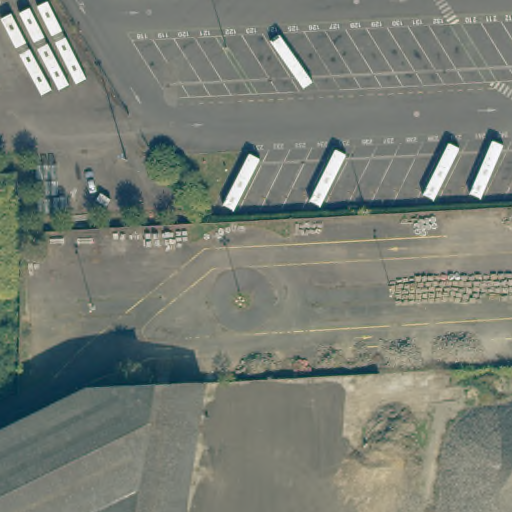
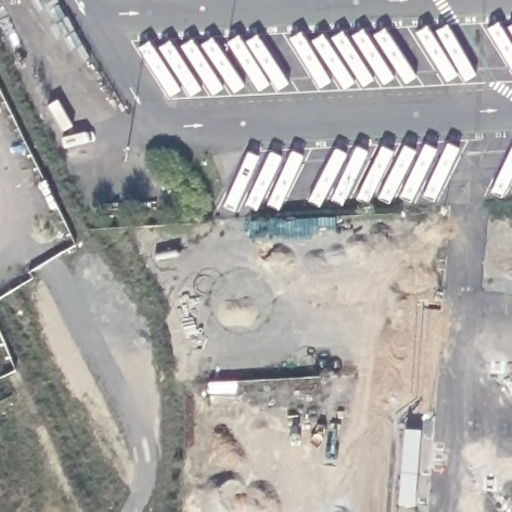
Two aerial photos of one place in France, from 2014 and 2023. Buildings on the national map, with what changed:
demolished [(83,375),(204,369),(182,512),(0,512),(0,415),(83,375)]

